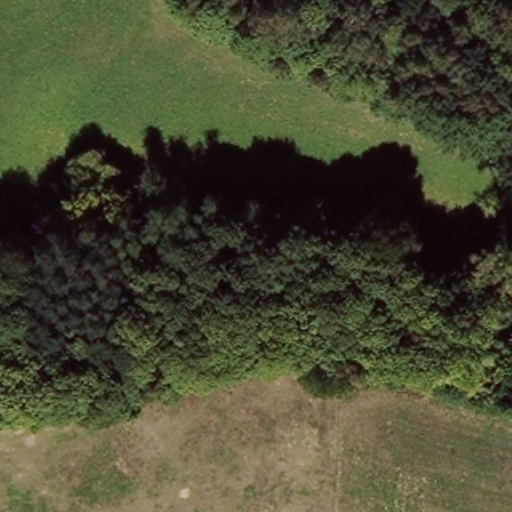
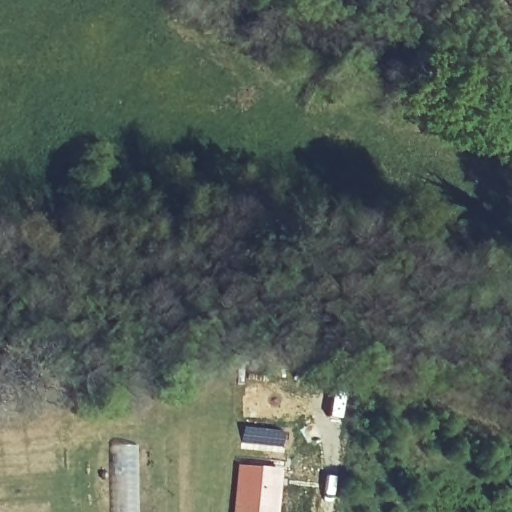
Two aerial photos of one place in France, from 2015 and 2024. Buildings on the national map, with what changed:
new [(236,463),(282,467),(279,512),(231,512),(236,463)]

